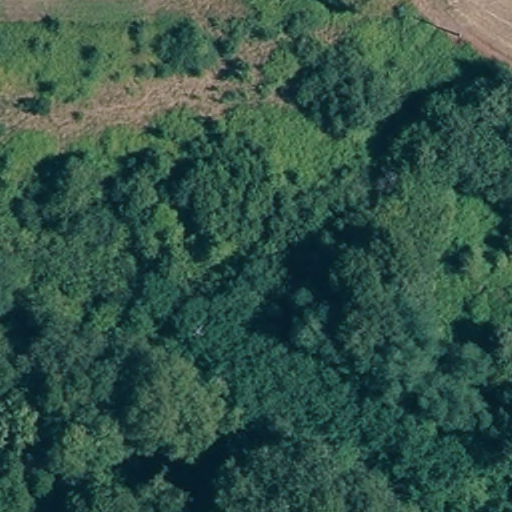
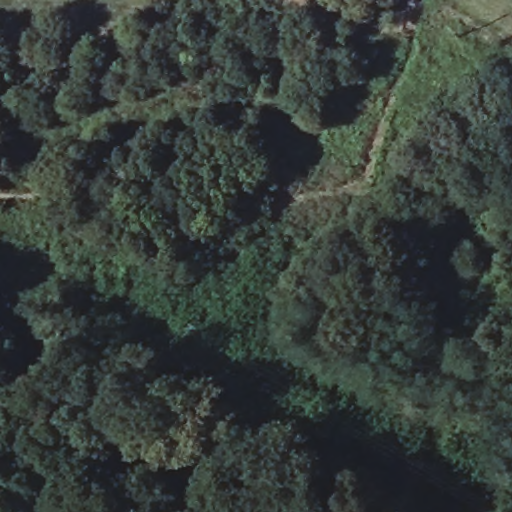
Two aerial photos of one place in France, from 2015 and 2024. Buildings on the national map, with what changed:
[]

